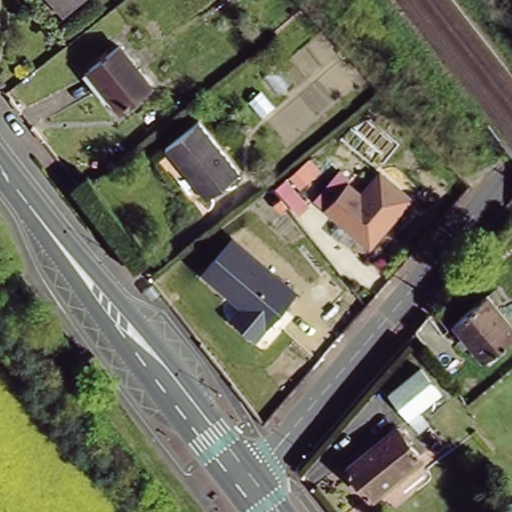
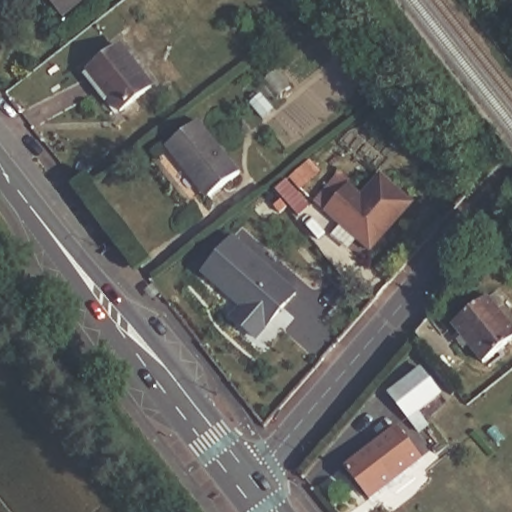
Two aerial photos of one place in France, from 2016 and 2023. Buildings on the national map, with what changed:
unchanged [(66,15),(53,0),(83,0),(66,15)]
unchanged [(0,40),(0,3),(18,26),(0,40)]
unchanged [(138,90),(118,107),(86,68),(106,52),(138,90)]
unchanged [(207,198),(170,152),(198,129),(236,175),(207,198)]
unchanged [(349,184),(359,195),(380,172),(412,202),(367,252),(322,215),(349,184)]
unchanged [(233,235),(295,293),(253,342),(228,322),(237,310),(196,275),(233,235)]
unchanged [(489,297),(512,327),(512,342),(484,364),(453,325),(489,297)]
unchanged [(466,364),(450,376),(418,334),(431,318),(466,364)]
unchanged [(423,367),(443,392),(409,417),(390,393),(423,367)]
unchanged [(388,432),(408,461),(369,488),(349,460),(388,432)]

